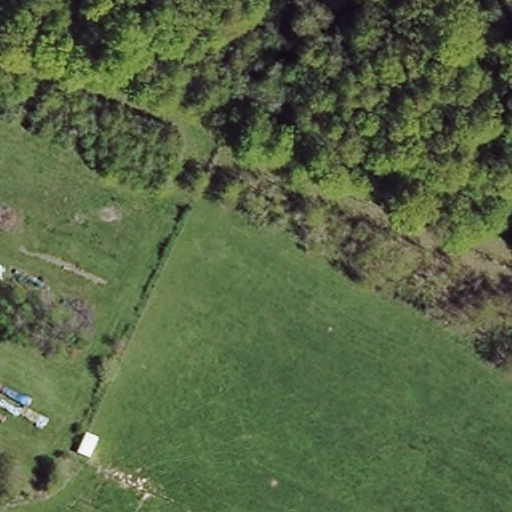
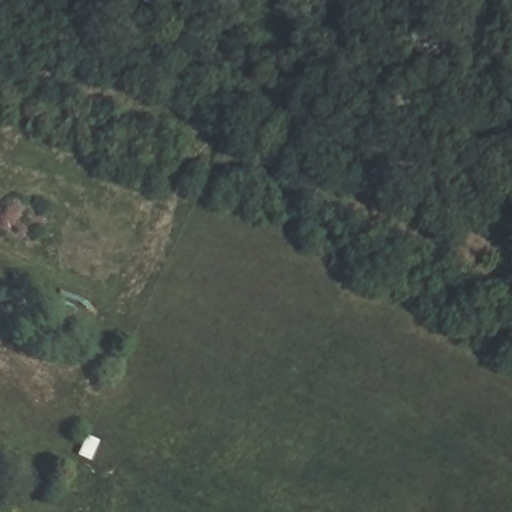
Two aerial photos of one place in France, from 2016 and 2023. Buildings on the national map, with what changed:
[]

